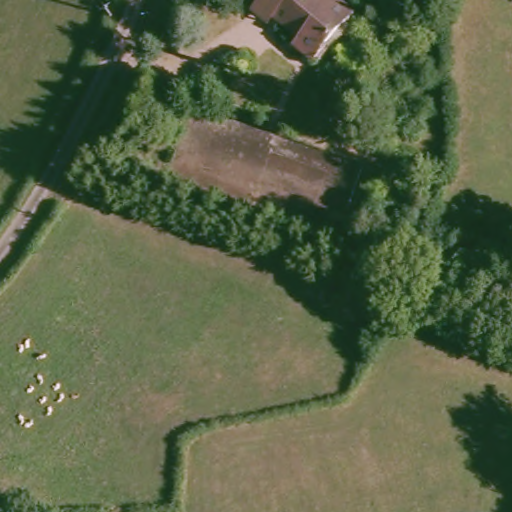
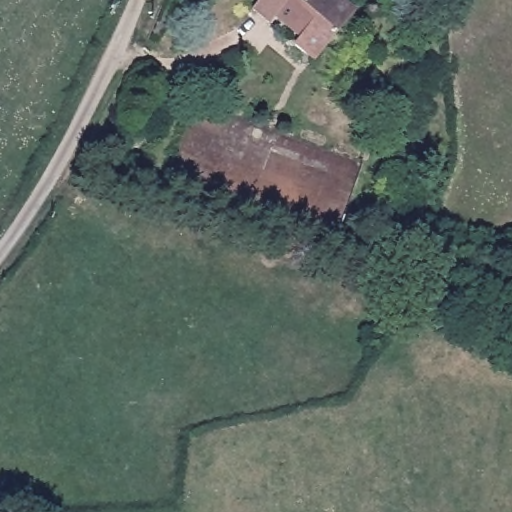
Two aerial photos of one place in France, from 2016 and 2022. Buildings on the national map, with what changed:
unchanged [(347,16),(315,54),(307,47),(301,54),(291,45),(306,27),(279,3),(271,11),(258,0),(331,0),(347,16)]

